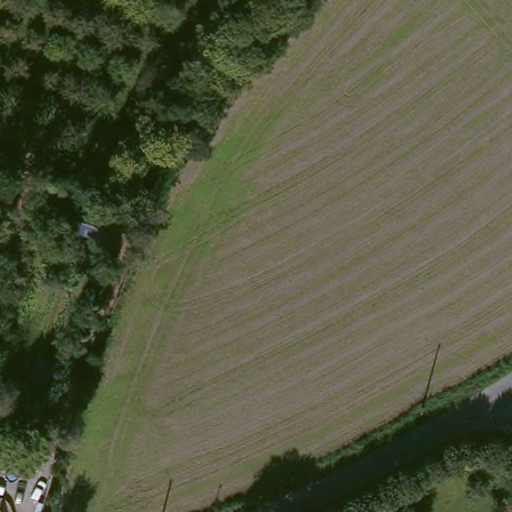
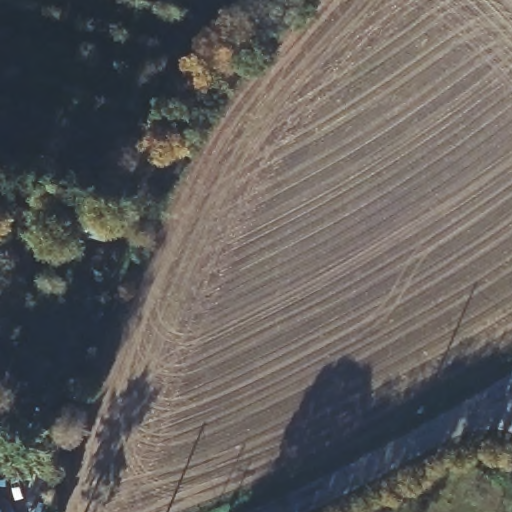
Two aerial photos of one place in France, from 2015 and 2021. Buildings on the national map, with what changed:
unchanged [(86,196),(128,209),(127,210),(126,217),(120,233),(79,219),(86,196)]

